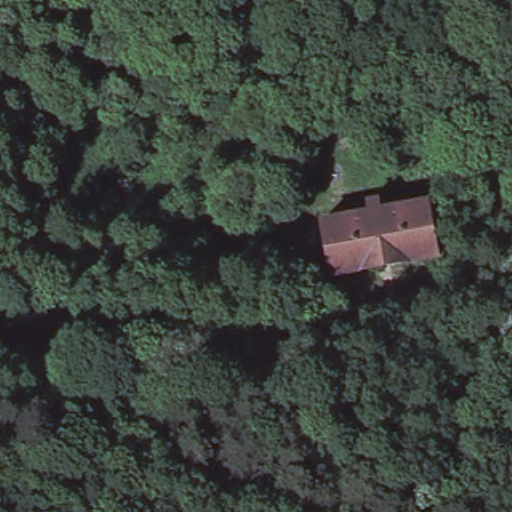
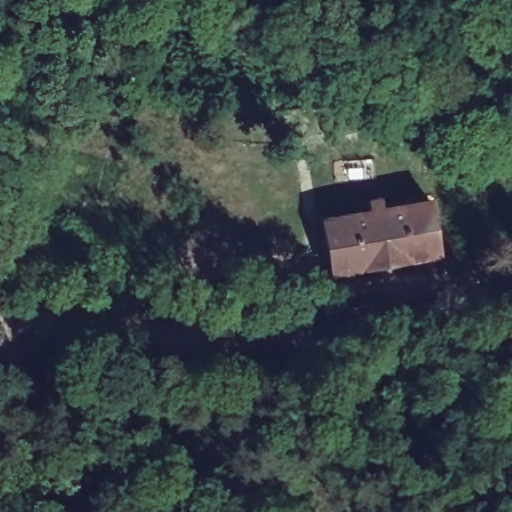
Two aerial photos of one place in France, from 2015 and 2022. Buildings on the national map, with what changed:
unchanged [(353,136),(323,140),(320,118),(350,114),(353,136)]
unchanged [(327,223),(374,213),(373,205),(388,203),(389,211),(436,202),(447,256),(373,272),(338,277),(327,223)]

